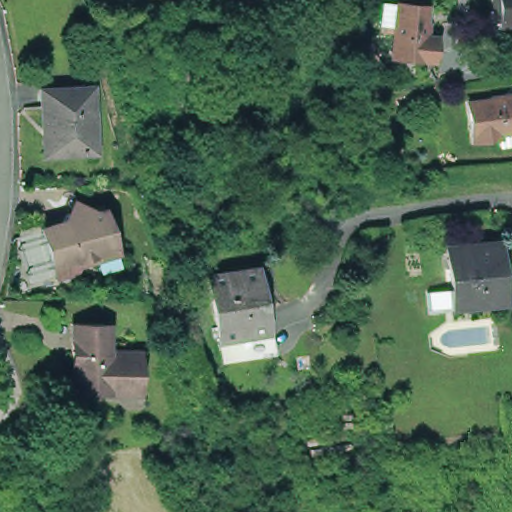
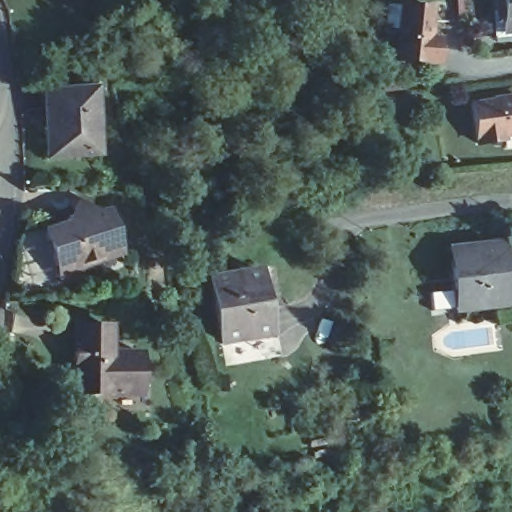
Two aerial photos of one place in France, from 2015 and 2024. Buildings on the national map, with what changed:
unchanged [(500,0),(512,0),(512,34),(509,34),(502,35),(502,25),(500,14),(500,0)]
unchanged [(428,38),(440,39),(440,48),(439,62),(398,59),(398,55),(401,18),(402,6),(430,8),(430,14),(428,38)]
unchanged [(105,152),(62,160),(58,133),(52,133),(47,96),(97,89),(105,152)]
unchanged [(503,135),(477,139),(477,131),(472,100),(495,96),(495,95),(508,93),(508,94),(512,93),(512,128),(502,130),(503,135)]
unchanged [(55,275),(50,260),(40,224),(62,218),(65,209),(74,206),(77,199),(86,203),(88,210),(100,206),(112,242),(97,246),(92,254),(78,259),(73,267),(72,270),(55,275)]
unchanged [(505,308),(456,313),(451,256),(499,251),(505,308)]
unchanged [(213,269),(260,260),(272,322),(227,331),(213,269)]
unchanged [(272,322),(277,346),(238,354),(232,355),(231,355),(227,331),(272,322)]
unchanged [(132,394),(93,394),(78,394),(78,380),(78,376),(79,324),(88,324),(108,324),(108,352),(145,352),(145,376),(145,394),(132,394)]

